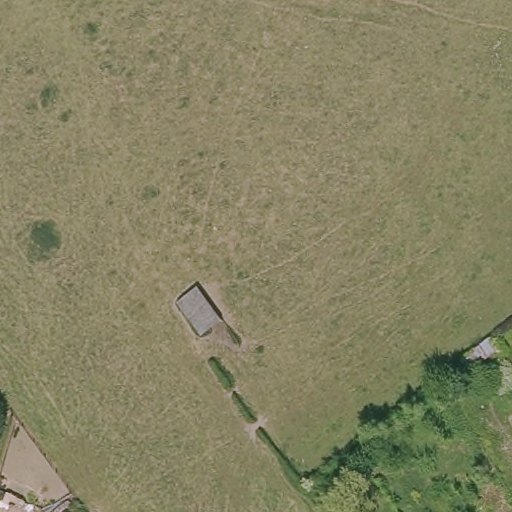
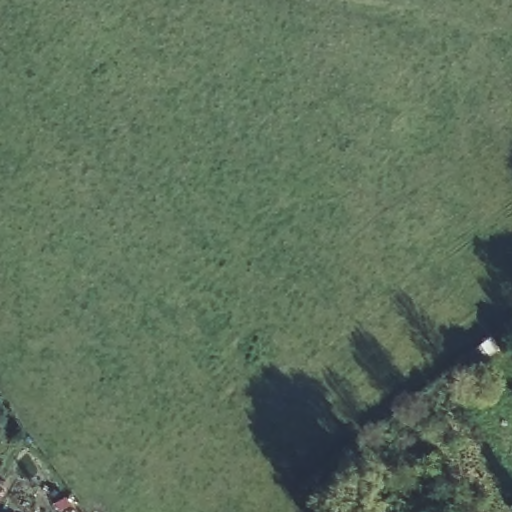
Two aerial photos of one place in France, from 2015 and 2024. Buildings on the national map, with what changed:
demolished [(198,287),(222,323),(195,335),(173,302),(198,287)]

